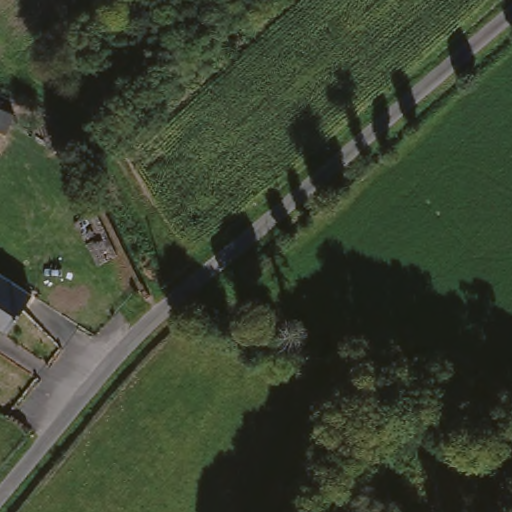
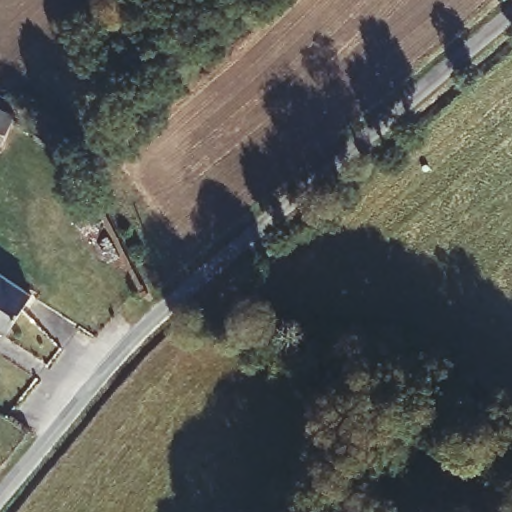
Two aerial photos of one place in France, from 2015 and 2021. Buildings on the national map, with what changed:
unchanged [(0,140),(0,114),(11,119),(0,140)]
unchanged [(0,280),(29,295),(10,327),(0,321),(0,280)]

